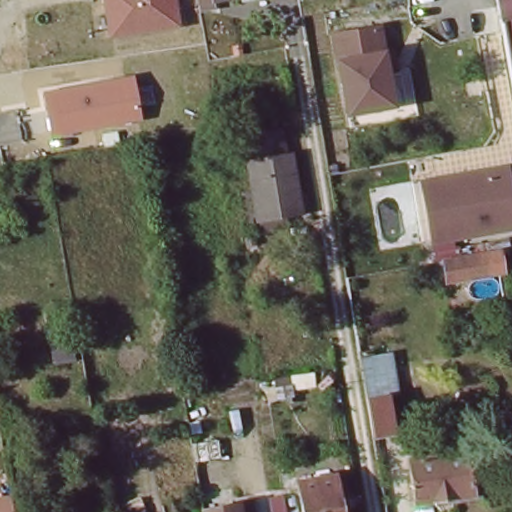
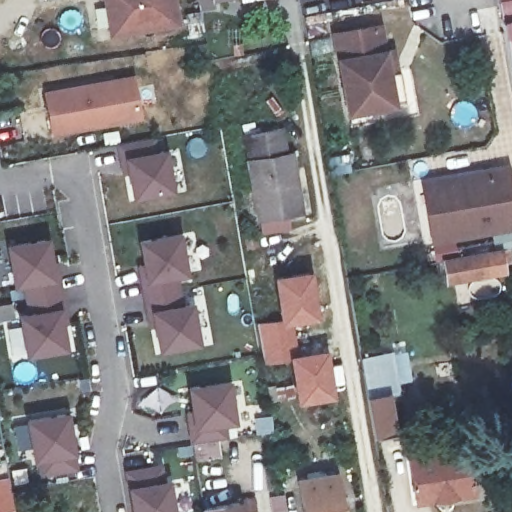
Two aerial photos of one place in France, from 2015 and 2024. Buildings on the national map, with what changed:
unchanged [(102,0),(175,0),(180,25),(108,37),(102,0)]
unchanged [(512,83),(497,0),(512,0),(512,83)]
unchanged [(346,91),(335,33),(380,24),(385,51),(392,49),(397,72),(401,71),(407,101),(395,103),(362,109),(350,111),(346,91)]
unchanged [(134,75),(141,119),(52,134),(46,92),(134,75)]
unchanged [(242,135),(280,129),(285,154),(290,153),(301,213),(257,221),(242,135)]
new [(119,143),(150,139),(152,152),(166,149),(174,192),(130,199),(119,143)]
unchanged [(512,232),(452,241),(432,244),(425,195),(423,185),(442,182),(485,176),(509,172),(512,193),(512,232)]
new [(137,242),(180,234),(187,275),(177,277),(182,304),(192,303),(200,345),(158,353),(137,242)]
new [(22,315),(33,314),(26,281),(16,283),(10,245),(47,239),(53,277),(59,276),(65,309),(61,310),(66,347),(29,355),(22,315)]
unchanged [(455,259),(504,250),(507,273),(447,283),(443,261),(455,259)]
new [(311,268),(317,318),(294,321),(278,322),(277,317),(271,274),(311,268)]
demolished [(46,312),(71,307),(78,367),(50,366),(46,312)]
new [(277,317),(278,322),(294,321),(298,351),(287,353),(288,360),(263,365),(255,321),(277,317)]
new [(298,351),(327,347),(333,396),(295,402),(293,395),(291,383),(288,360),(287,353),(298,351)]
unchanged [(364,363),(363,358),(383,354),(398,433),(378,438),(364,363)]
new [(186,385),(228,380),(233,422),(192,427),(186,385)]
new [(39,458),(33,459),(27,421),(65,414),(74,469),(42,475),(39,458)]
unchanged [(481,491),(443,498),(438,500),(426,502),(418,459),(472,449),(481,491)]
new [(162,483),(167,482),(172,512),(132,512),(125,473),(158,467),(162,483)]
unchanged [(304,512),(298,478),(334,472),(341,512),(304,512)]
unchanged [(235,489),(237,503),(248,501),(250,512),(199,512),(196,496),(235,489)]
new [(19,512),(0,512),(0,504),(17,500),(19,512)]

